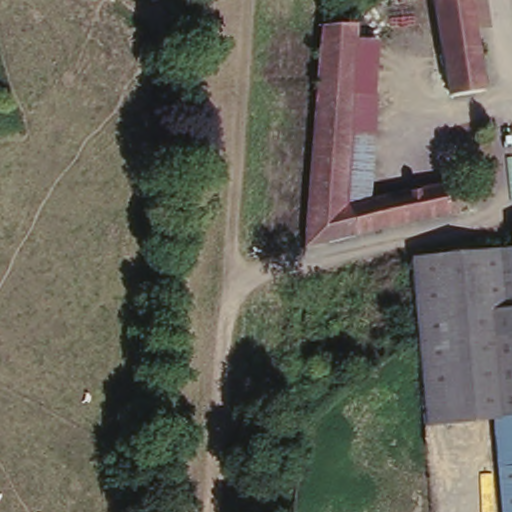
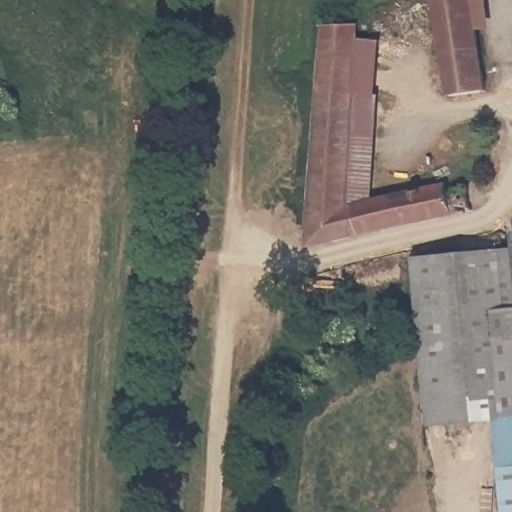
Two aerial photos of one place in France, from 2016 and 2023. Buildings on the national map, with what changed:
unchanged [(495,89),(452,94),(430,0),(475,0),(495,89)]
unchanged [(318,13),(355,13),(354,34),(346,195),(368,192),(445,181),(444,197),(468,191),(468,212),(451,217),(302,239),(318,13)]
unchanged [(376,34),(368,192),(346,195),(354,34),(376,34)]
unchanged [(512,221),(512,239),(510,220),(512,221)]
unchanged [(420,419),(410,252),(512,247),(512,512),(500,512),(490,417),(420,419)]

